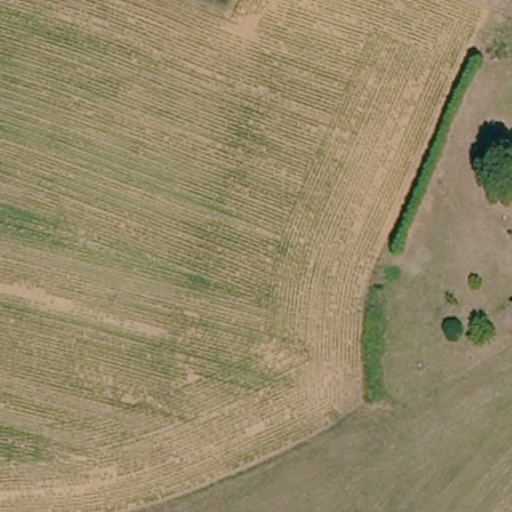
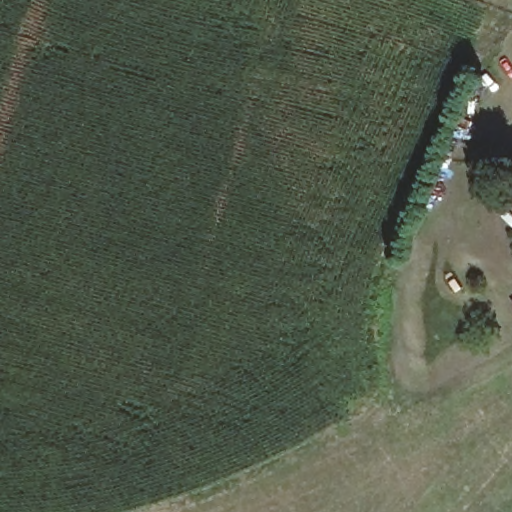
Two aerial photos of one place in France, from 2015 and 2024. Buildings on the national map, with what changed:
[]

